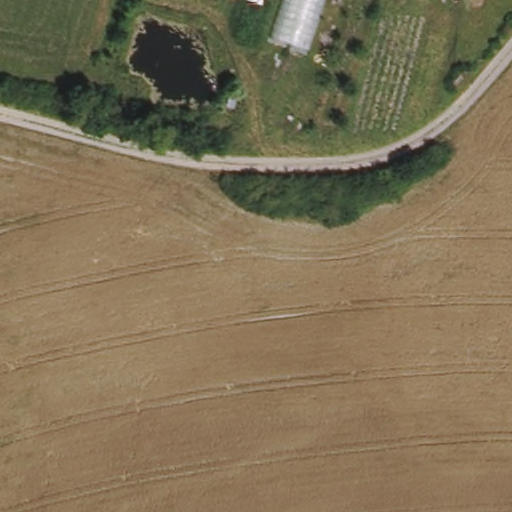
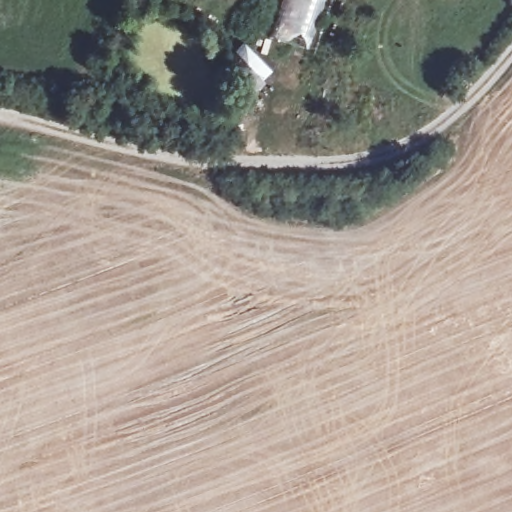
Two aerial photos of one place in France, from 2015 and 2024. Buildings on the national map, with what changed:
unchanged [(309,50),(272,36),(284,0),(327,0),(309,50)]

